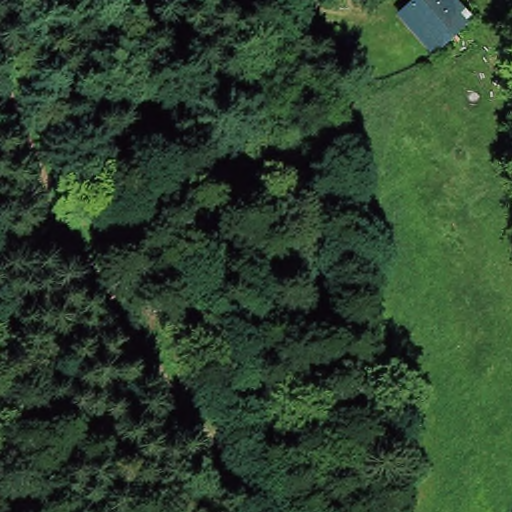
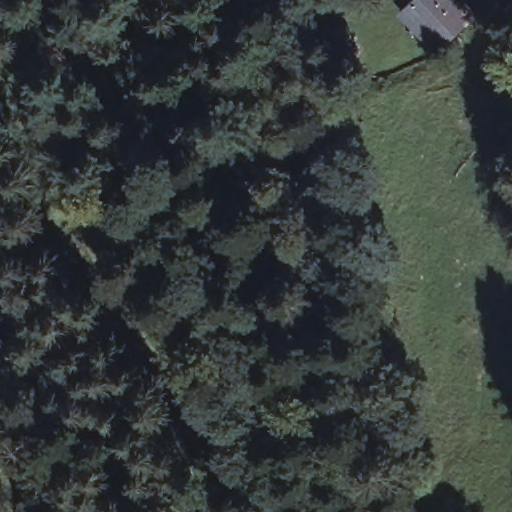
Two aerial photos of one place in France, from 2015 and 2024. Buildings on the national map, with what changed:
unchanged [(459,0),(471,13),(457,25),(451,17),(436,31),(410,4),(414,0),(459,0)]
unchanged [(341,56),(338,59),(327,51),(338,37),(359,53),(352,63),(341,56)]

